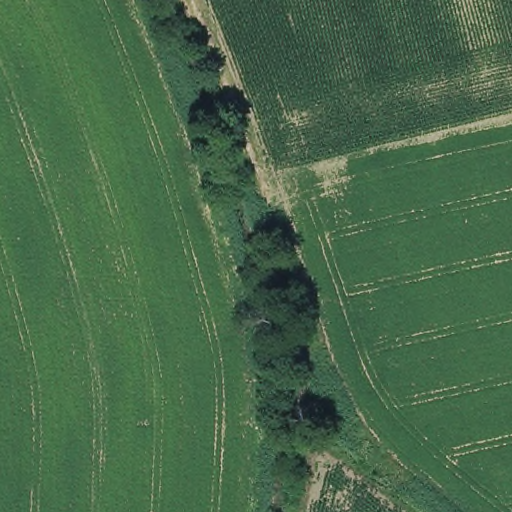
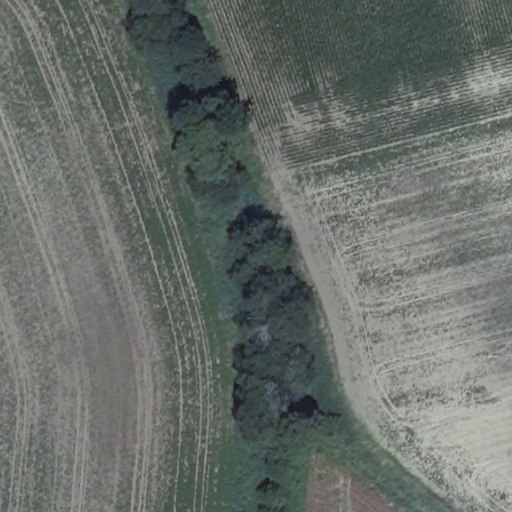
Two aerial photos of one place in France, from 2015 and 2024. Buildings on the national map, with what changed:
[]

